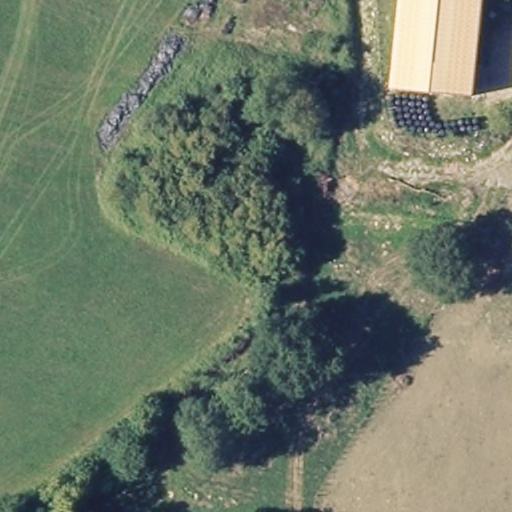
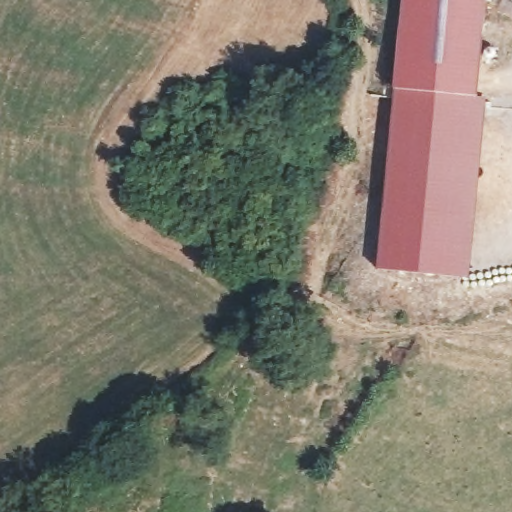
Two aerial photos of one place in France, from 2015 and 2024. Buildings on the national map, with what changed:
unchanged [(401,0),(485,0),(476,95),(392,89),(401,0)]
new [(476,95),(488,96),(468,280),(376,269),(392,89),(476,95)]

